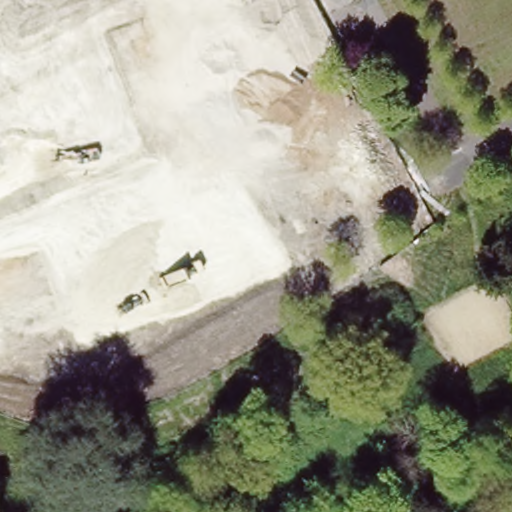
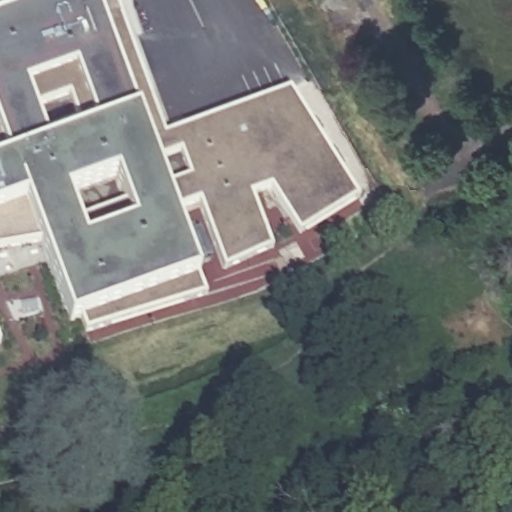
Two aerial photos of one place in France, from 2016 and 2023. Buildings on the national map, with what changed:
new [(271,188),(252,194),(273,248),(223,271),(198,201),(175,209),(198,275),(206,296),(85,333),(80,318),(70,322),(40,241),(30,242),(0,247),(0,4),(7,0),(118,0),(166,132),(291,87),(360,197),(298,234),(271,188)]

